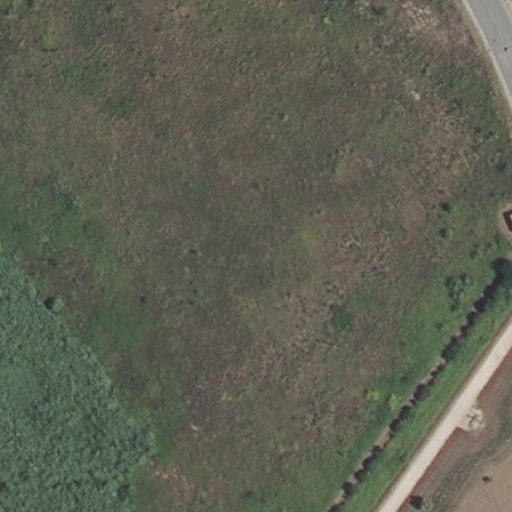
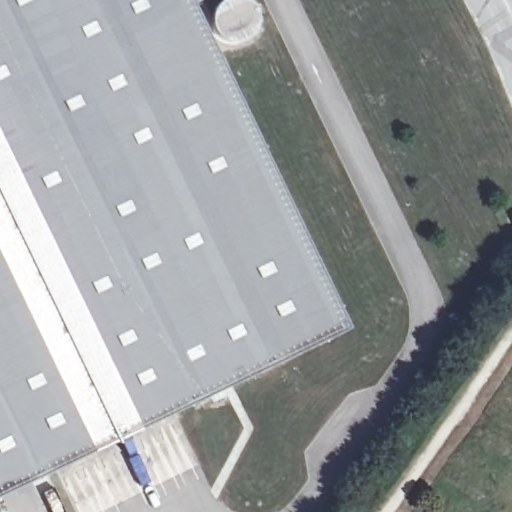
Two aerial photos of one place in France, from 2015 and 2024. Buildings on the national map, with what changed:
new [(343,327),(0,492),(0,0),(198,0),(189,4),(343,327)]

